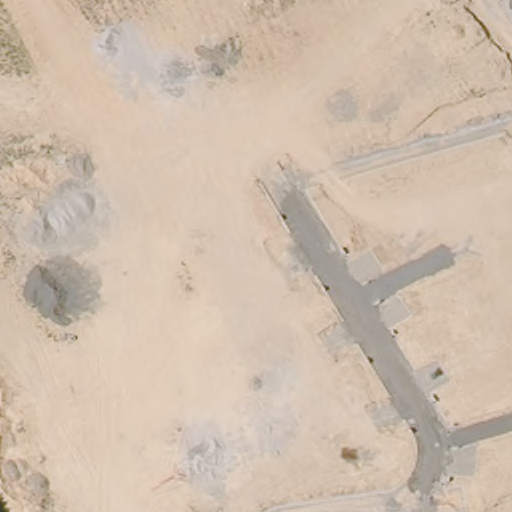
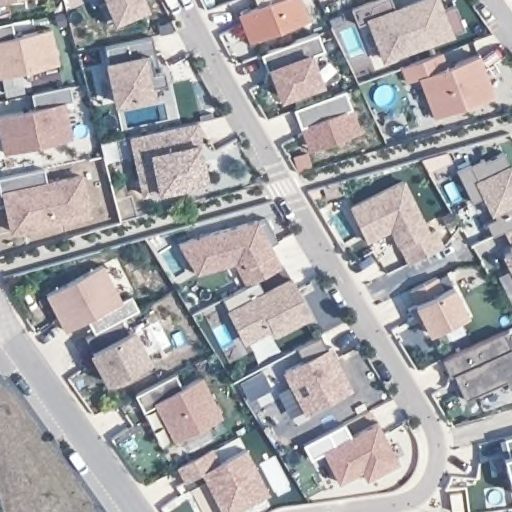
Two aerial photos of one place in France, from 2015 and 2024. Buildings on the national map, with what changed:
new [(145,0),(150,12),(111,29),(104,10),(97,13),(92,0),(145,0)]
new [(253,0),(297,0),(304,18),(258,36),(248,40),(237,11),(247,7),(255,4),(253,0)]
new [(455,5),(464,27),(384,57),(370,20),(357,25),(350,9),(373,0),(391,0),(394,9),(418,0),(439,0),(442,10),(455,5)]
new [(12,36),(48,27),(56,63),(0,75),(0,23),(9,21),(12,36)]
new [(314,30),(321,47),(306,52),(317,80),(279,95),(268,67),(264,69),(258,52),(314,30)]
new [(149,35),(156,67),(160,67),(163,80),(148,83),(150,93),(113,101),(101,45),(149,35)]
new [(440,49),(445,62),(478,50),(494,92),(435,112),(420,72),(408,77),(402,62),(440,49)]
new [(28,93),(67,85),(70,100),(61,102),(68,139),(2,152),(0,143),(0,115),(32,108),(28,93)]
new [(299,125),(291,106),(341,86),(358,127),(314,146),(308,148),(299,125)]
new [(133,157),(118,160),(114,137),(193,120),(198,142),(196,143),(204,180),(157,190),(141,193),(133,157)]
new [(482,153),(484,156),(502,147),(512,168),(512,221),(502,226),(492,231),(485,217),(497,212),(495,206),(492,207),(484,191),(471,197),(455,166),(482,153)]
new [(45,183),(79,176),(88,215),(10,231),(2,193),(0,194),(0,177),(42,168),(45,183)]
unchanged [(370,234),(365,236),(349,202),(402,176),(427,227),(434,224),(443,241),(407,259),(399,242),(379,252),(370,234)]
new [(235,261),(197,272),(177,241),(258,217),(258,219),(266,215),(278,239),(270,242),(282,265),(258,277),(265,291),(292,277),(311,313),(276,332),(271,322),(244,337),(222,296),(247,283),(235,261)]
new [(510,241),(502,226),(512,221),(512,245),(510,241)]
new [(504,251),(512,247),(512,268),(504,251)]
new [(105,257),(124,292),(134,287),(142,302),(125,311),(98,326),(90,312),(68,323),(49,287),(105,257)]
new [(435,272),(442,286),(452,281),(467,311),(429,329),(415,300),(417,299),(410,286),(435,272)]
new [(98,326),(125,311),(132,325),(136,322),(149,346),(134,354),(138,362),(113,375),(96,343),(97,343),(90,330),(98,326)]
new [(504,327),(512,344),(512,382),(509,383),(505,377),(465,395),(458,381),(459,378),(455,370),(450,372),(442,356),(504,327)]
new [(304,358),(297,346),(321,332),(328,346),(329,346),(351,388),(308,411),(286,368),(304,358)]
new [(154,383),(175,372),(182,387),(201,376),(222,416),(175,441),(154,402),(147,407),(143,400),(139,392),(154,383)]
new [(343,421),(350,434),(377,420),(398,460),(367,476),(363,467),(340,480),(324,450),(311,457),(303,442),(343,421)]
unchanged [(506,463),(499,436),(505,434),(512,432),(512,485),(506,463)]
new [(213,448),(220,462),(246,448),(270,493),(233,512),(223,512),(203,473),(185,482),(177,467),(213,448)]

